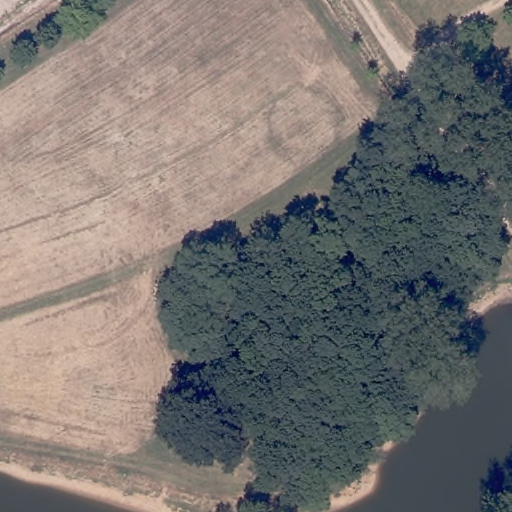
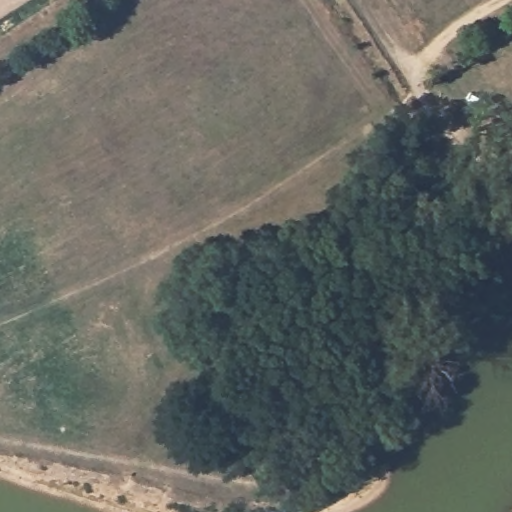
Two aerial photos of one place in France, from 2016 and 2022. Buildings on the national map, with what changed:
[]

